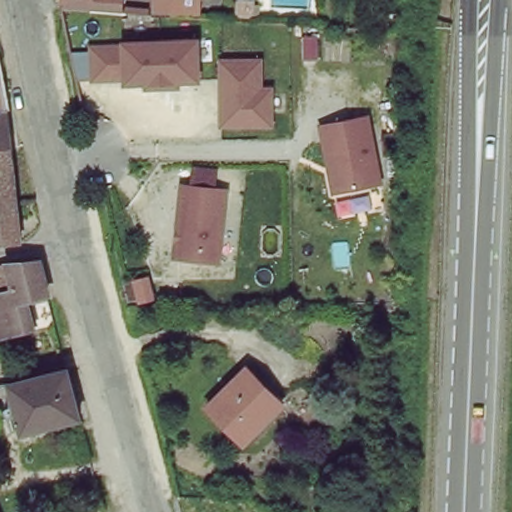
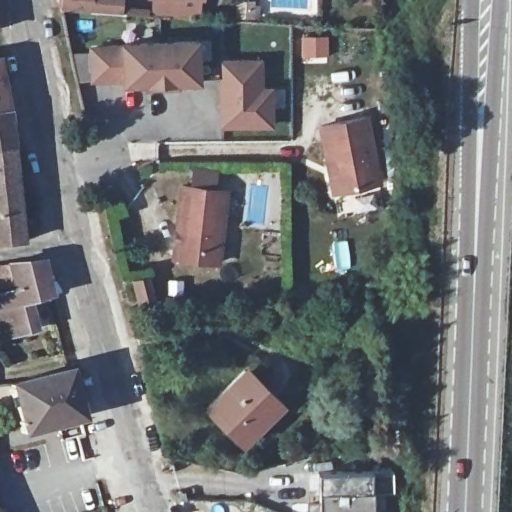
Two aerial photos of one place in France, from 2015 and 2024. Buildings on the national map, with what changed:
unchanged [(134,0),(135,14),(104,11),(78,10),(78,0),(134,0)]
unchanged [(375,2),(375,0),(398,0),(398,3),(375,2)]
unchanged [(125,46),(125,44),(198,40),(200,80),(127,84),(126,79),(95,80),(93,48),(125,46)]
unchanged [(8,108),(0,110),(0,60),(8,108)]
unchanged [(261,60),(262,89),(272,89),(273,125),(223,125),(223,109),(229,109),(229,90),(223,90),(223,61),(261,60)]
unchanged [(8,108),(13,146),(0,148),(0,110),(8,108)]
unchanged [(369,113),(382,181),(332,192),(315,123),(369,113)]
unchanged [(13,146),(24,240),(0,243),(0,148),(13,146)]
unchanged [(217,260),(170,256),(178,184),(228,187),(217,260)]
unchanged [(127,250),(129,261),(118,263),(116,253),(127,250)]
unchanged [(32,296),(37,325),(0,333),(0,293),(15,291),(11,263),(41,261),(50,294),(32,296)]
unchanged [(122,280),(149,275),(153,298),(127,303),(122,280)]
unchanged [(21,433),(8,386),(66,371),(78,417),(21,433)]
unchanged [(207,408),(245,372),(278,407),(241,445),(207,408)]
new [(394,469),(394,488),(373,488),(374,512),(322,512),(322,472),(394,469)]
demolished [(178,502),(187,502),(234,507),(234,512),(181,512),(178,502)]

